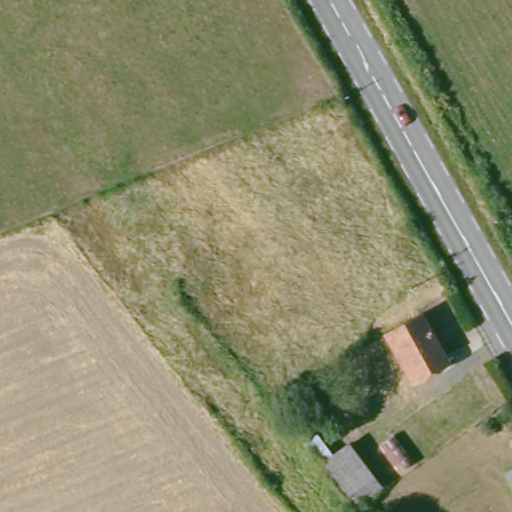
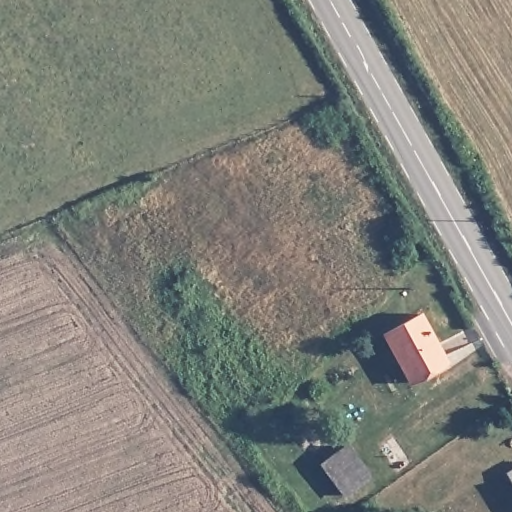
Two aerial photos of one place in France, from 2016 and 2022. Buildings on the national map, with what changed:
unchanged [(451,362),(415,384),(387,338),(424,318),(451,362)]
unchanged [(318,437),(333,456),(324,464),(307,446),(318,437)]
unchanged [(350,446),(374,475),(353,496),(327,468),(350,446)]
unchanged [(512,473),(512,485),(507,476),(512,473)]

